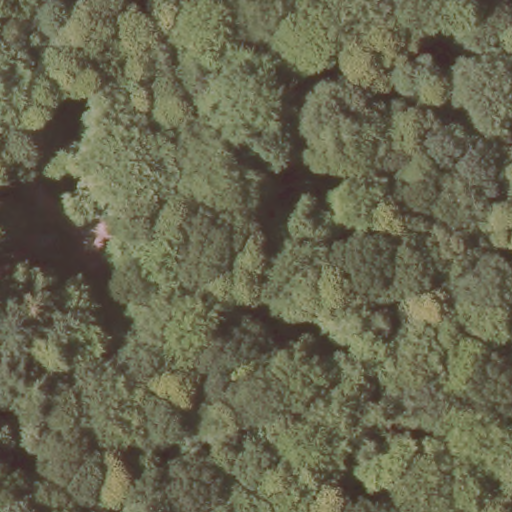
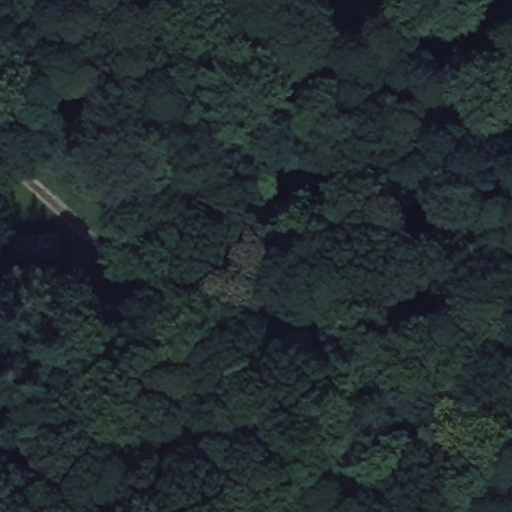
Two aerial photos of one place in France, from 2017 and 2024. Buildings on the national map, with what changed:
unchanged [(60,236),(61,263),(17,267),(15,239),(60,236)]

